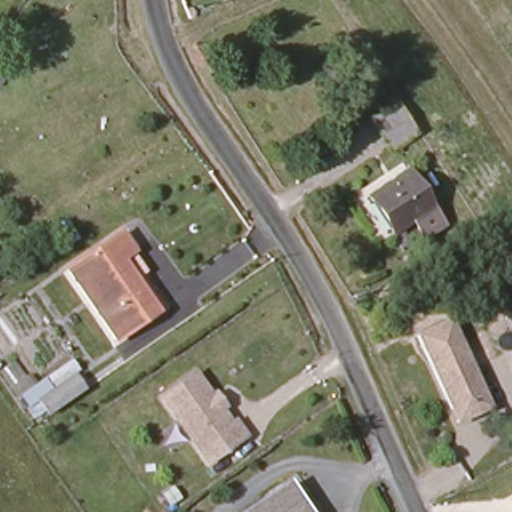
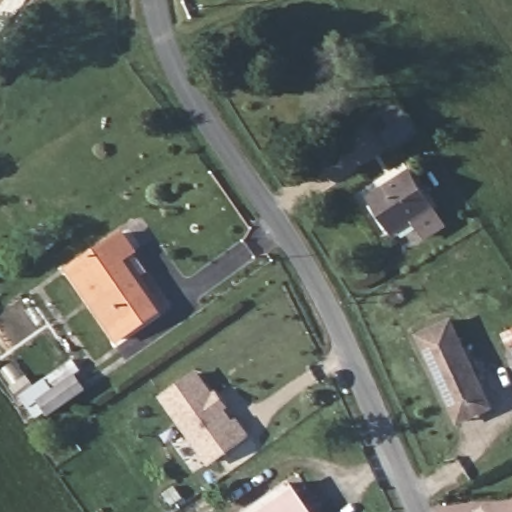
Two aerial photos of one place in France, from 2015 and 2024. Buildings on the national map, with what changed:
unchanged [(418,134),(388,151),(368,119),(396,101),(418,134)]
unchanged [(407,174),(430,211),(391,235),(368,198),(407,174)]
unchanged [(119,339),(71,270),(124,235),(135,251),(150,272),(137,280),(160,311),(119,339)]
unchanged [(429,360),(418,335),(452,318),(462,345),(429,360)]
unchanged [(458,349),(487,412),(458,425),(429,363),(458,349)]
unchanged [(68,361),(80,377),(30,411),(19,395),(68,361)]
unchanged [(230,424),(234,421),(246,435),(209,461),(162,398),(194,375),(230,424)]
unchanged [(306,512),(256,512),(287,488),(306,512)]

